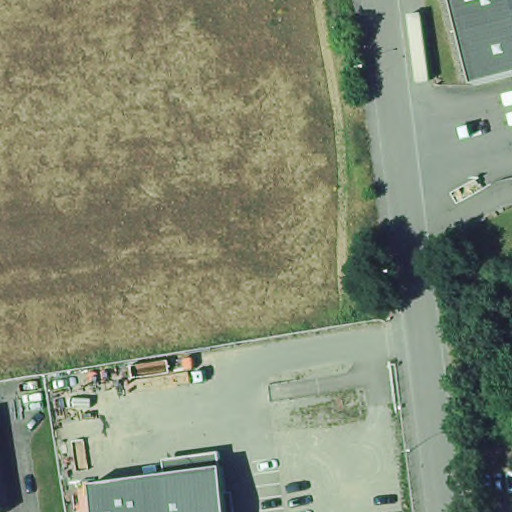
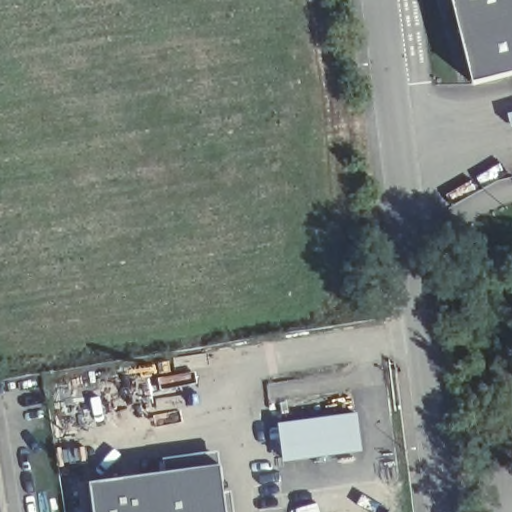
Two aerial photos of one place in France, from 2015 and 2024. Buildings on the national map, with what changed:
unchanged [(444,0),(512,0),(512,59),(467,83),(444,0)]
new [(358,413),(364,453),(283,464),(277,424),(358,413)]
unchanged [(218,467),(224,512),(90,512),(87,485),(218,467)]

